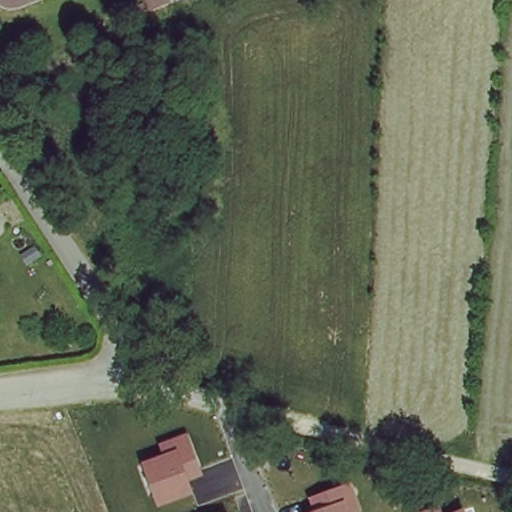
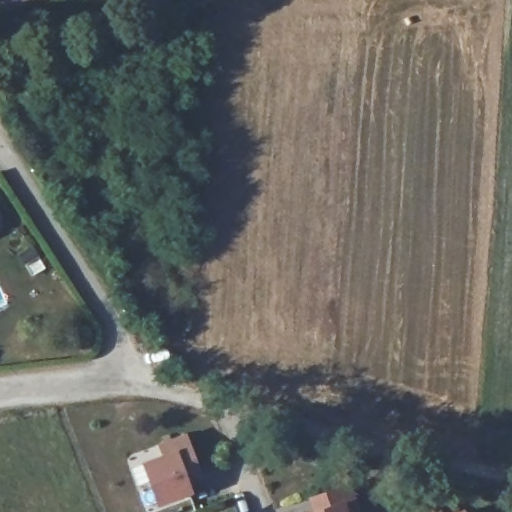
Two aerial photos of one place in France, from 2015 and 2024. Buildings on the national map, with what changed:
unchanged [(141,462),(160,455),(157,444),(185,433),(201,476),(188,482),(192,494),(157,507),(141,462)]
unchanged [(349,483),(359,511),(356,512),(312,512),(308,498),(349,483)]
unchanged [(440,512),(421,512),(438,506),(440,512)]
unchanged [(464,512),(453,512),(463,508),(464,512)]

